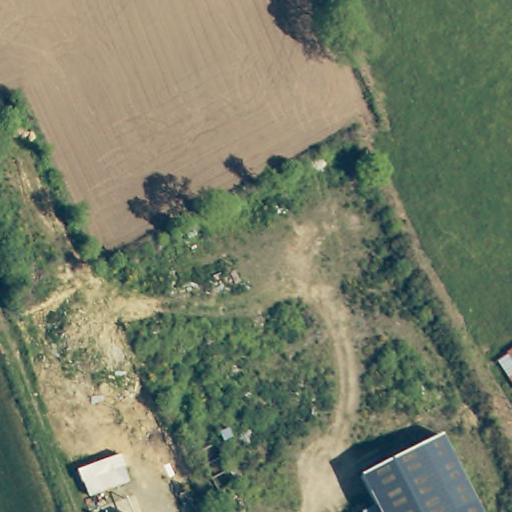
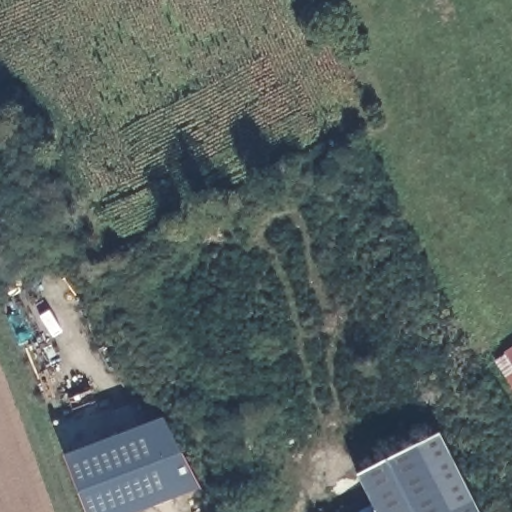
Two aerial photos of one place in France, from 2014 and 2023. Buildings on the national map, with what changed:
unchanged [(504,352),(512,348),(512,366),(504,352)]
unchanged [(511,388),(502,374),(512,368),(512,388),(511,388)]
new [(163,419),(204,489),(149,512),(87,512),(65,458),(163,419)]
unchanged [(434,439),(472,512),(373,512),(355,480),(434,439)]

